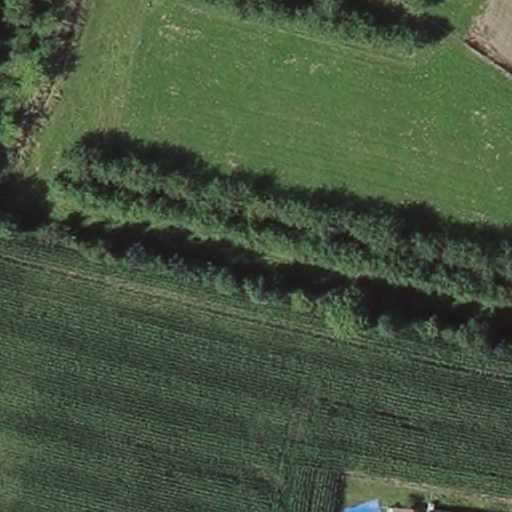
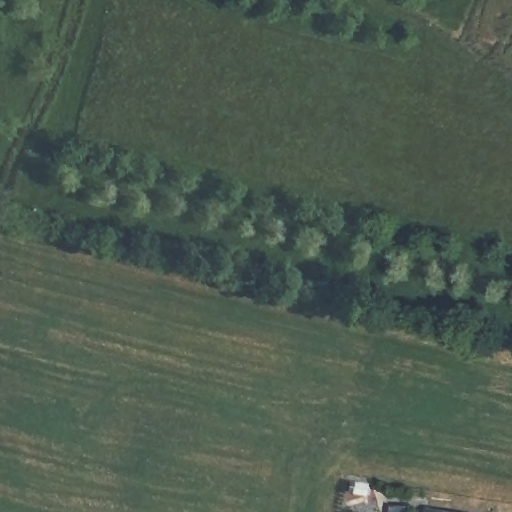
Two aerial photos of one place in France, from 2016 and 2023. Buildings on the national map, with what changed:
unchanged [(447,512),(434,512),(434,510),(447,512)]

